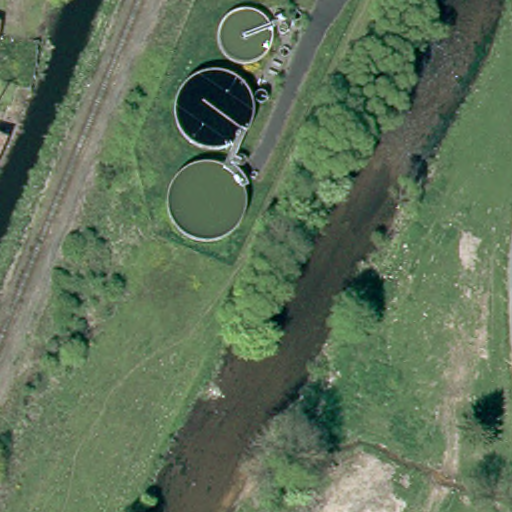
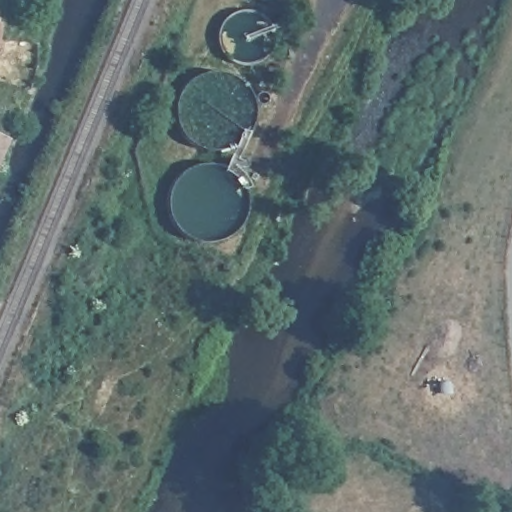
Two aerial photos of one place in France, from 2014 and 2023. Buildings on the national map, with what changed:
unchanged [(0,150),(0,135),(5,137),(0,150)]

